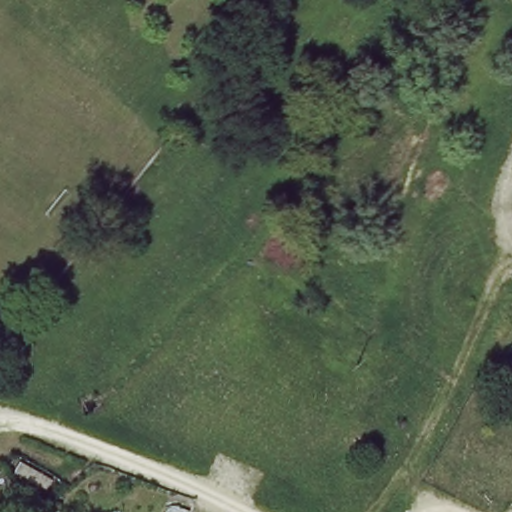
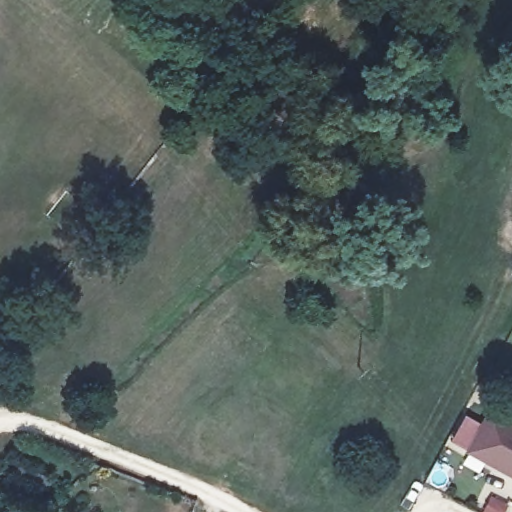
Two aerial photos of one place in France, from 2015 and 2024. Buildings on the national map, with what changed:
new [(480,423),(490,404),(512,417),(512,477),(449,440),(465,414),(480,423)]

